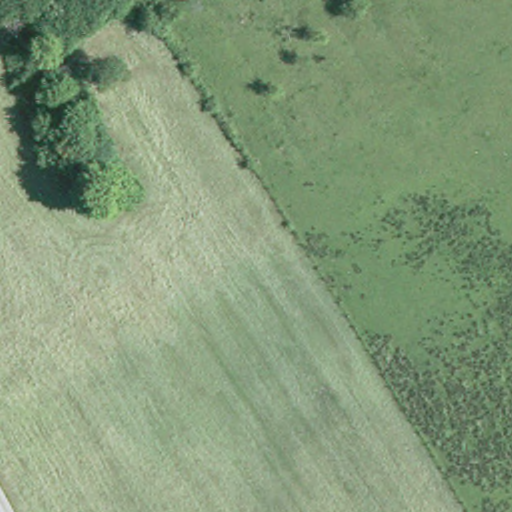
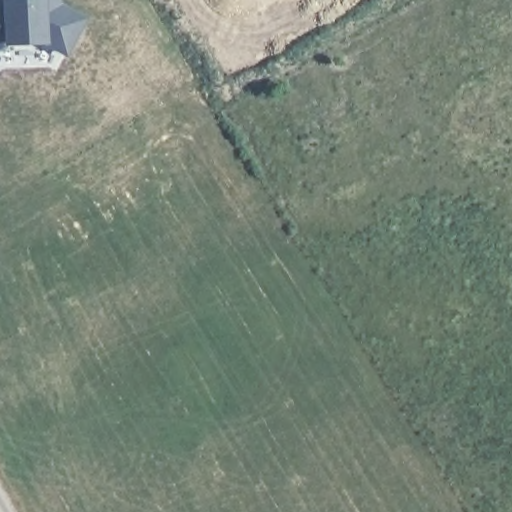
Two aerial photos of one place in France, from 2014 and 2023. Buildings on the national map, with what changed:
new [(62,3),(88,17),(67,56),(46,43),(4,45),(0,48),(0,0),(62,0),(62,3)]

